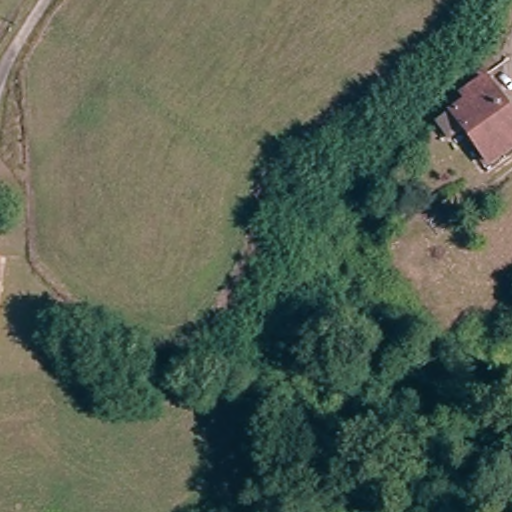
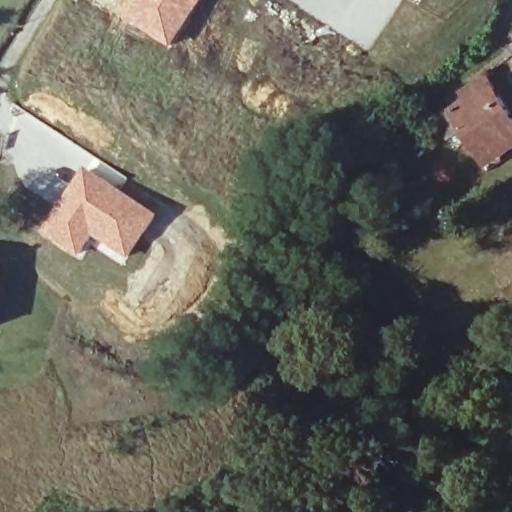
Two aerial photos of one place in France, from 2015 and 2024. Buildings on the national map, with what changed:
new [(140,0),(204,0),(172,50),(126,22),(140,0)]
unchanged [(512,120),(512,141),(482,159),(445,107),(460,95),(458,89),(480,76),(482,79),(512,120)]
new [(84,165),(160,216),(129,262),(94,238),(79,260),(40,233),(84,165)]
demolished [(9,346),(10,324),(53,329),(54,351),(9,346)]

